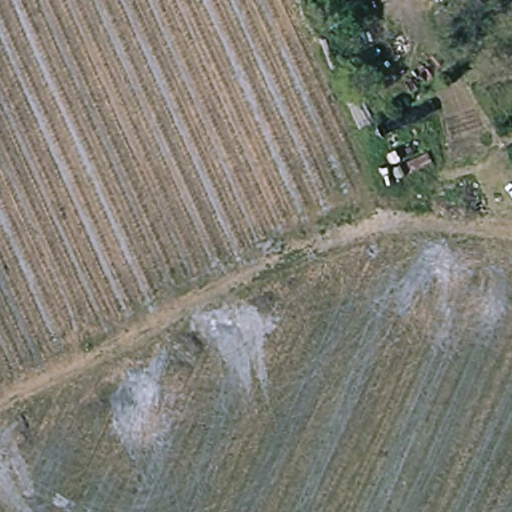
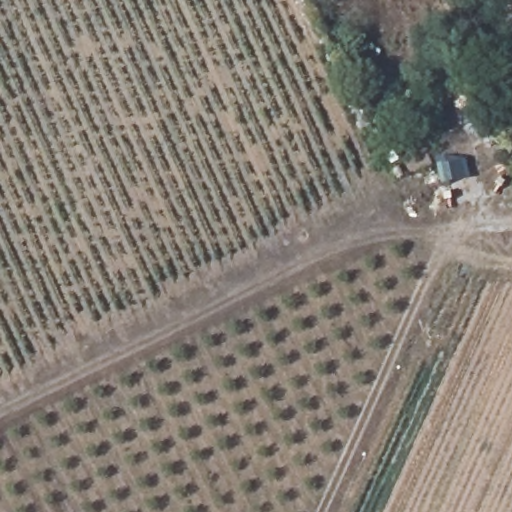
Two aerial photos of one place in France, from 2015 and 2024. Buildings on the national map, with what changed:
unchanged [(507,14),(512,11),(512,23),(507,14)]

